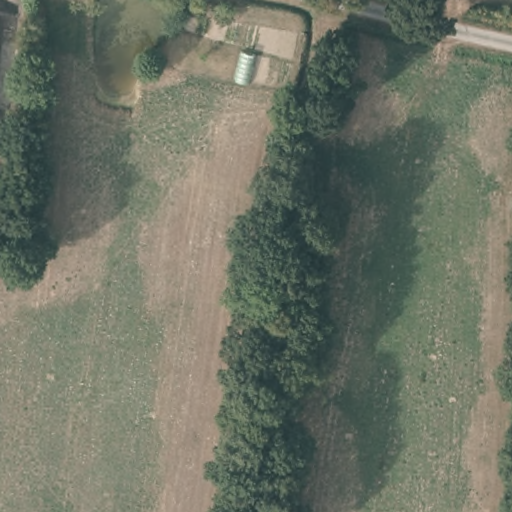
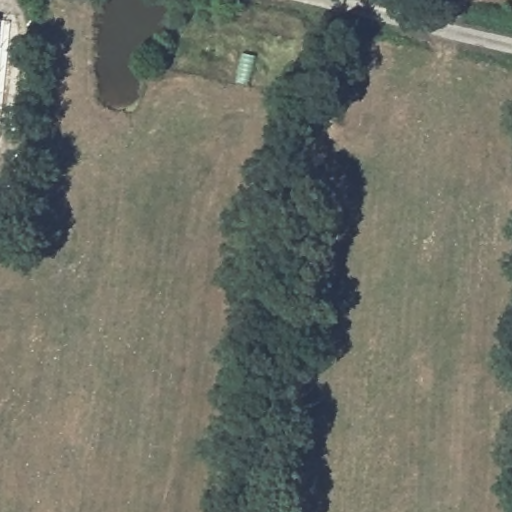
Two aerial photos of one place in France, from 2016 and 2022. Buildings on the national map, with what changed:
unchanged [(52,9),(54,0),(73,0),(72,9),(52,9)]
unchanged [(23,251),(0,246),(0,212),(26,215),(23,251)]

